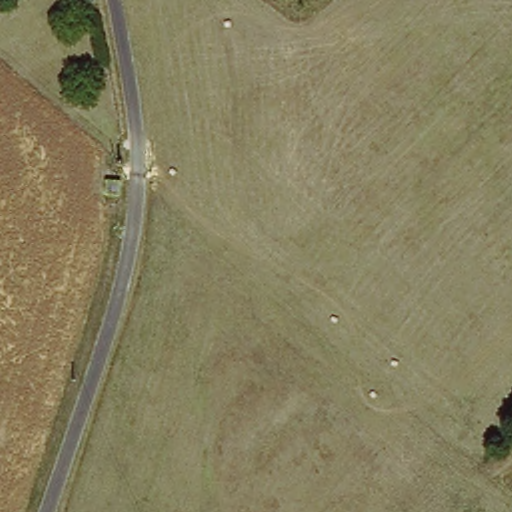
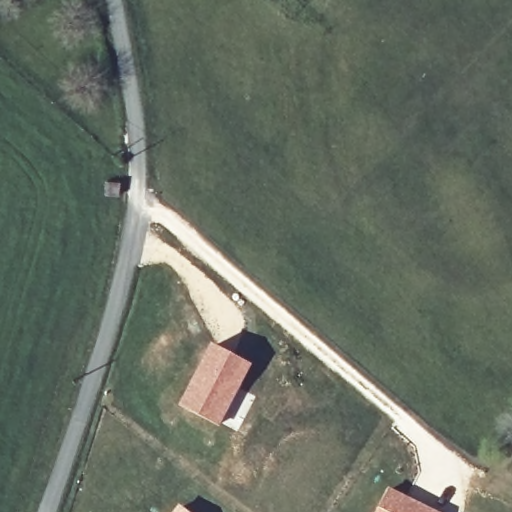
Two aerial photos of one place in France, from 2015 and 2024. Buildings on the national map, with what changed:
new [(213,342),(254,363),(219,427),(178,406),(213,342)]
new [(442,512),(375,512),(389,486),(442,512)]
new [(192,512),(173,512),(180,503),(192,512)]

